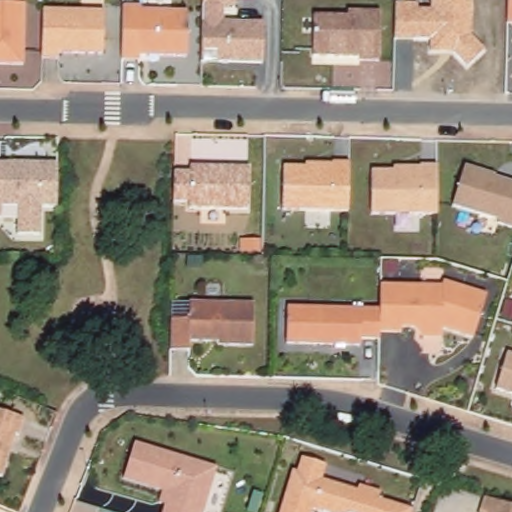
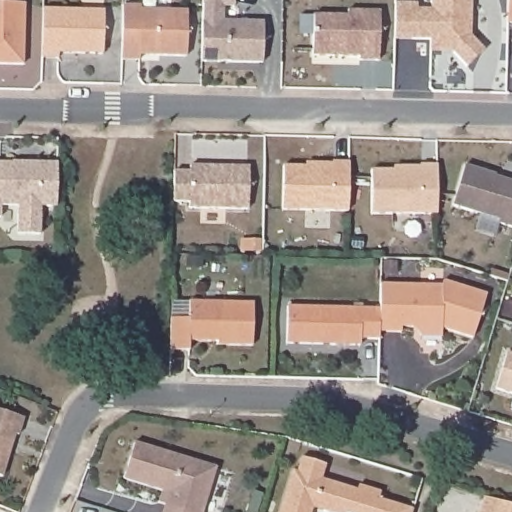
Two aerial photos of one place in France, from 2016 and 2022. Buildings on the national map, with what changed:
unchanged [(202,61),(202,6),(203,0),(234,0),(234,7),(223,6),(223,21),(264,22),(263,62),(202,61)]
unchanged [(395,3),(419,4),(419,9),(431,9),(431,0),(471,0),(471,36),(483,49),(466,65),(454,52),(430,52),(430,39),(395,39),(395,3)]
unchanged [(0,64),(0,3),(25,4),(23,65),(0,64)]
unchanged [(107,49),(64,48),(63,53),(47,52),(47,50),(47,4),(108,5),(107,49)]
unchanged [(186,57),(158,56),(158,51),(140,51),(140,60),(122,60),(123,6),(140,7),(140,10),(187,11),(186,57)]
unchanged [(380,60),(357,60),(357,54),(311,54),(312,12),(347,12),(347,9),(379,10),(380,60)]
unchanged [(56,208),(42,207),(41,234),(15,234),(16,218),(0,218),(0,162),(59,162),(56,208)]
unchanged [(349,182),(348,211),(283,210),(284,166),(312,167),(312,164),(333,164),(333,162),(350,162),(349,182)]
unchanged [(437,176),(437,214),(372,214),(372,170),(401,170),(401,166),(421,166),(421,165),(437,165),(437,176)]
unchanged [(498,222),(500,220),(452,205),(465,165),(512,180),(512,227),(498,222)]
unchanged [(174,172),(190,172),(190,166),(250,167),(249,209),(189,207),(190,201),(172,201),(174,172)]
unchanged [(447,280),(448,275),(492,289),(477,333),(446,323),(446,332),(425,331),(417,323),(406,323),(406,328),(384,327),(385,318),(385,314),(385,303),(386,279),(447,280)]
unchanged [(188,318),(189,295),(224,296),(254,296),(252,345),(222,345),(217,345),(217,341),(189,341),(189,350),(170,350),(171,318),(188,318)]
unchanged [(293,301),(385,303),(385,314),(385,318),(384,327),(384,335),(366,335),(366,341),(292,340),(293,301)]
unchanged [(496,388),(507,353),(512,355),(512,393),(496,388)]
unchanged [(25,434),(21,433),(8,475),(0,473),(0,408),(30,417),(25,434)]
unchanged [(124,479),(135,443),(216,468),(203,512),(164,512),(166,505),(159,503),(163,491),(124,479)]
unchanged [(326,475),(359,487),(363,481),(387,490),(384,498),(413,509),(413,512),(336,512),(317,506),(315,512),(280,512),(293,467),(298,468),(302,456),(330,465),(326,475)]
unchanged [(512,506),(512,512),(480,512),(485,497),(512,506)]

